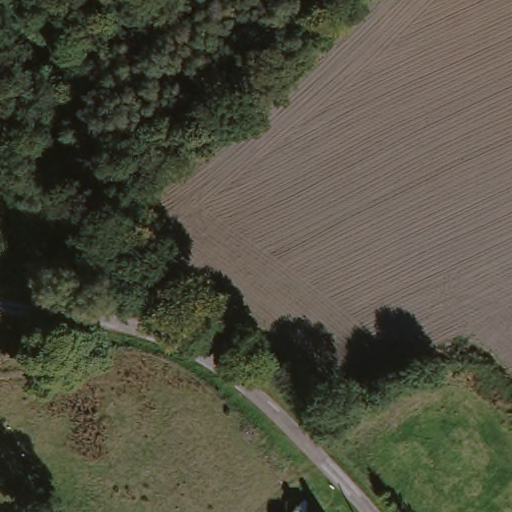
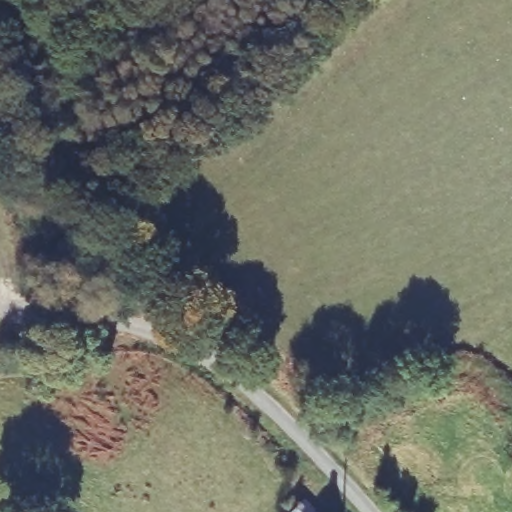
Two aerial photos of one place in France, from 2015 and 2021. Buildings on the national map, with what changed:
unchanged [(285,508),(301,493),(318,512),(288,512),(285,508)]

